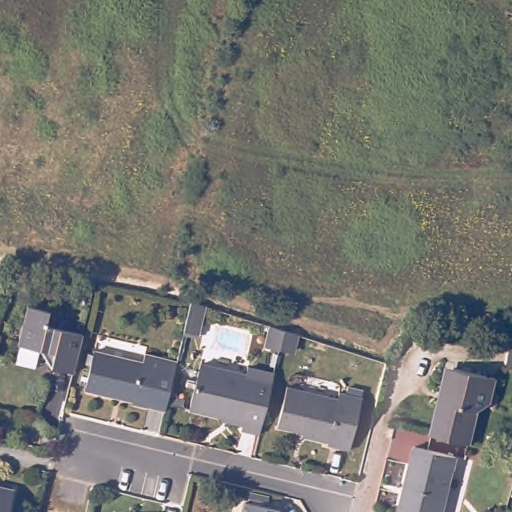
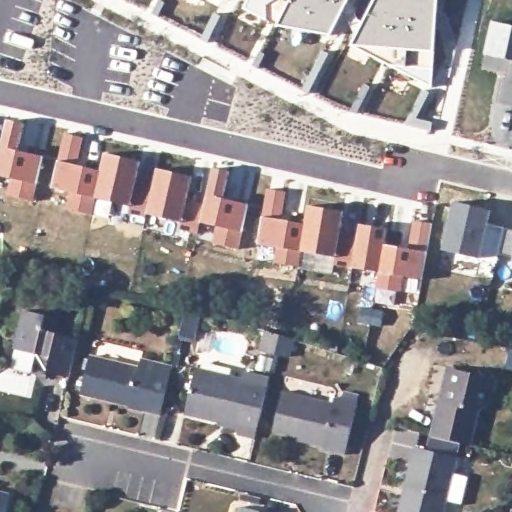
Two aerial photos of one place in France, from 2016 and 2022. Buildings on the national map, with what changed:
new [(348,0),(331,34),(277,25),(244,7),(248,0),(348,0)]
new [(438,0),(434,50),(432,67),(431,86),(389,64),(351,45),(374,0),(438,0)]
new [(484,67),(494,22),(512,26),(512,73),(484,67)]
new [(25,124),(18,149),(43,155),(36,183),(33,199),(9,194),(13,177),(0,175),(0,147),(7,120),(25,124)]
new [(187,200),(204,203),(213,166),(230,171),(225,196),(248,202),(238,248),(214,243),(219,225),(199,220),(198,232),(179,228),(182,220),(146,213),(145,217),(126,213),(129,204),(94,197),(91,213),(67,207),(73,190),(52,187),(59,159),(65,133),(83,137),(76,164),(100,171),(104,152),(141,161),(140,166),(193,175),(187,200)]
new [(422,279),(403,276),(401,292),(376,287),(379,271),(334,263),(335,257),(300,252),(299,266),(274,261),(278,245),(258,242),(268,189),(287,192),(281,220),(305,223),(307,205),(344,210),(339,236),(357,239),(360,223),(389,228),(386,245),(407,248),(414,220),(432,223),(422,279)]
new [(481,248),(478,258),(444,250),(454,200),(490,209),(487,221),(507,227),(512,228),(512,256),(481,248)]
unchanged [(198,307),(192,335),(177,332),(184,302),(198,307)]
unchanged [(46,373),(34,353),(12,348),(21,310),(43,314),(39,329),(76,338),(66,377),(46,373)]
unchanged [(265,328),(278,332),(273,353),(259,349),(265,328)]
unchanged [(512,344),(512,365),(506,364),(510,344),(512,344)]
unchanged [(79,393),(88,355),(136,366),(138,358),(169,366),(158,413),(125,406),(126,404),(110,400),(79,393)]
unchanged [(444,365),(451,367),(493,375),(487,402),(474,410),(467,441),(430,433),(437,398),(444,365)]
unchanged [(230,431),(232,423),(178,410),(189,366),(234,377),(236,369),(262,376),(248,435),(230,431)]
unchanged [(282,390),(331,401),(333,395),(356,400),(343,452),(322,447),(322,444),(302,440),(302,436),(272,429),(282,390)]
unchanged [(412,441),(453,450),(451,463),(447,464),(441,492),(443,496),(439,512),(398,512),(396,511),(401,489),(403,480),(412,441)]
unchanged [(1,512),(0,512),(0,491),(6,492),(1,512)]
unchanged [(110,511),(112,512),(110,512),(110,511)]
unchanged [(227,511),(229,512),(227,512),(227,511)]

